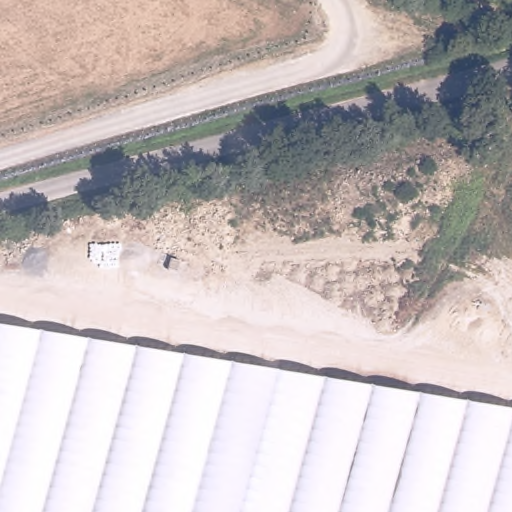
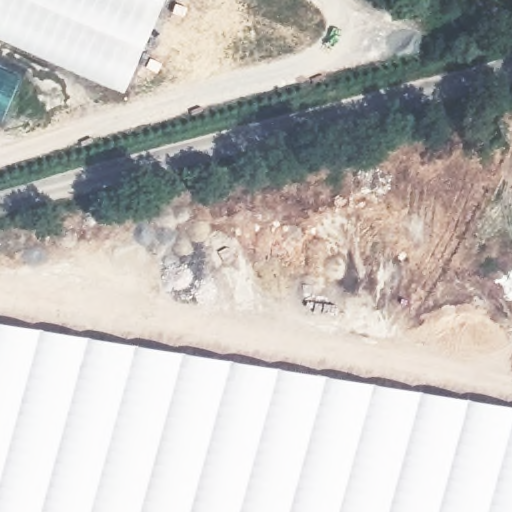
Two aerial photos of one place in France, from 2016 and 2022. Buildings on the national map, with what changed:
new [(0,40),(0,0),(164,0),(125,94),(0,40)]
new [(0,122),(0,121),(0,69),(19,77),(0,122)]
unchanged [(512,407),(512,512),(0,512),(0,319),(512,407)]

